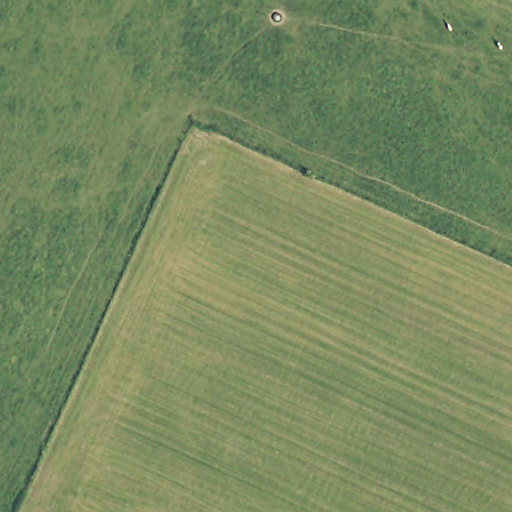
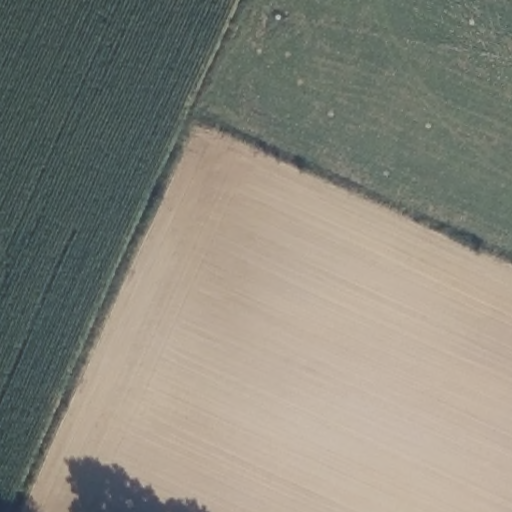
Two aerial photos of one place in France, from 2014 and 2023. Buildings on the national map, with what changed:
[]

